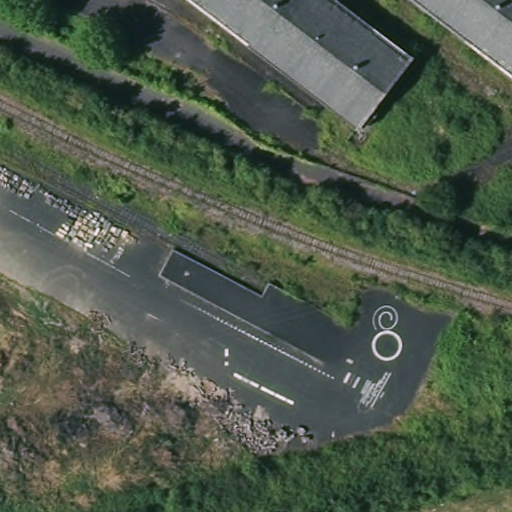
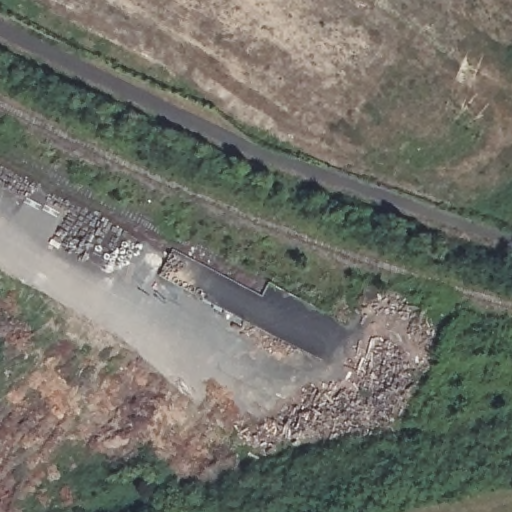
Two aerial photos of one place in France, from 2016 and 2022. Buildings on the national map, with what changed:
demolished [(353,16),(409,59),(354,128),(188,0),(332,0),(353,16)]
demolished [(412,0),(512,0),(512,77),(412,0)]

